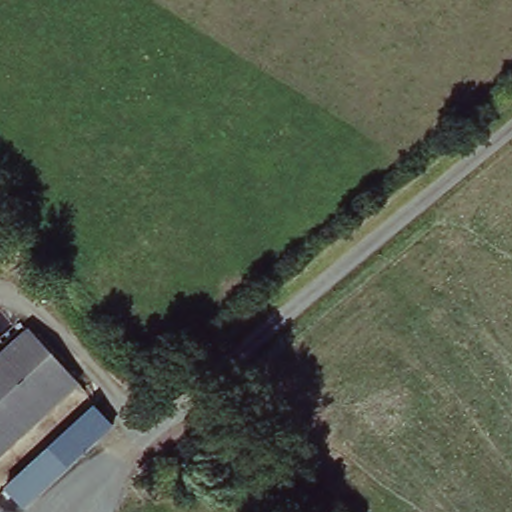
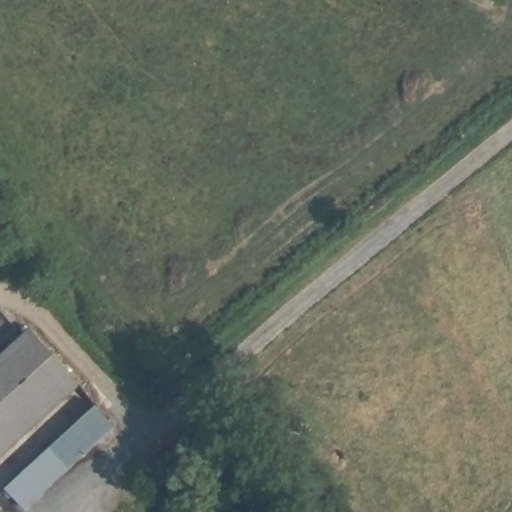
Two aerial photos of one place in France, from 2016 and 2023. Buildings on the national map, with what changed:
unchanged [(81,386),(0,458),(0,356),(29,331),(81,386)]
unchanged [(98,401),(121,425),(65,470),(45,447),(98,401)]
unchanged [(64,472),(20,511),(0,489),(45,449),(64,472)]

